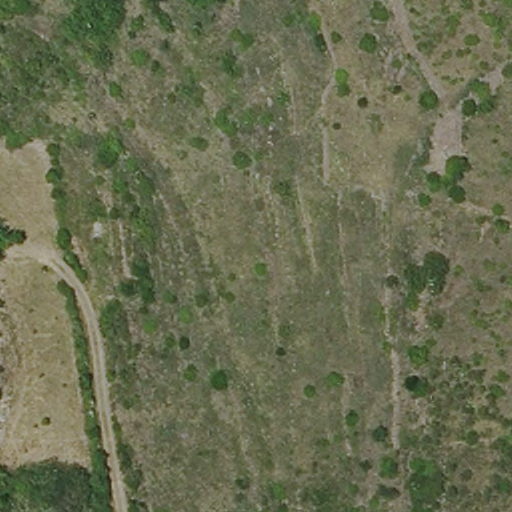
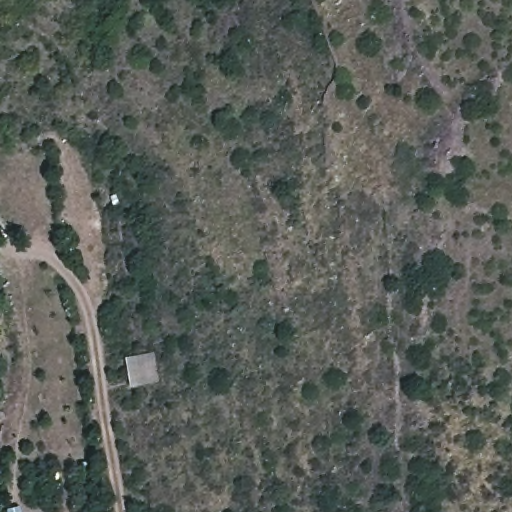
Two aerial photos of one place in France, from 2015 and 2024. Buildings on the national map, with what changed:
[]

